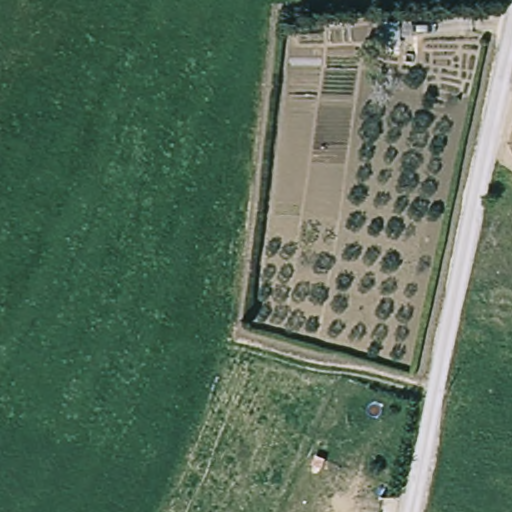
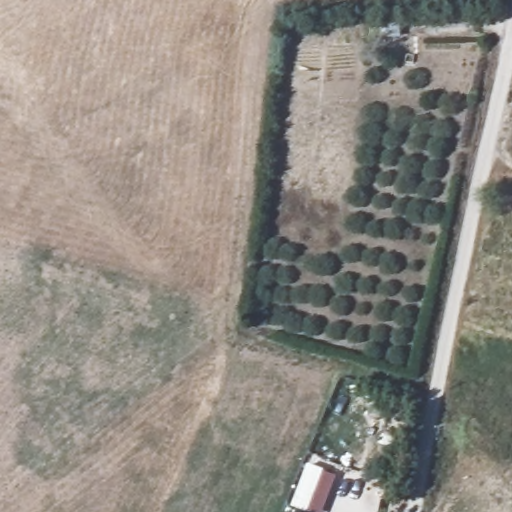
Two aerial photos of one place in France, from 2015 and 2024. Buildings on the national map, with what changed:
new [(308,465),(338,477),(322,512),(307,512),(291,505),(308,465)]

